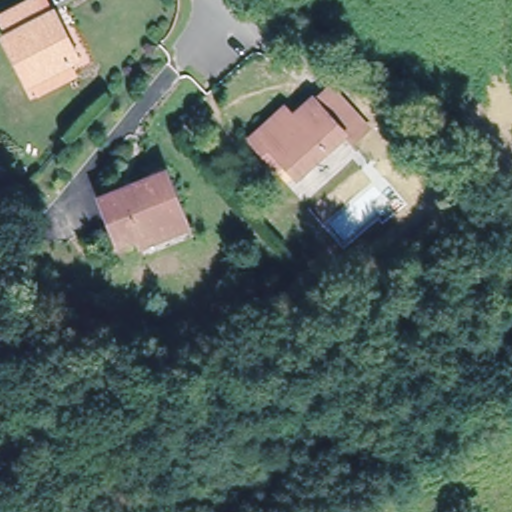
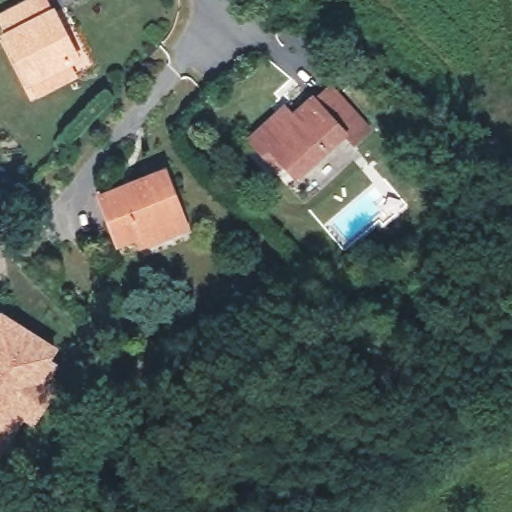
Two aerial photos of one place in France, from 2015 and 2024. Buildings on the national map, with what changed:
unchanged [(22,83),(0,35),(0,32),(3,30),(0,23),(0,11),(23,0),(35,0),(41,13),(52,8),(75,59),(65,64),(72,77),(28,96),(22,83)]
unchanged [(246,139),(255,131),(284,104),(294,114),(315,94),(319,98),(333,85),(371,130),(357,143),(349,134),(300,179),(287,165),(279,173),(246,139)]
unchanged [(187,225),(137,247),(134,240),(118,247),(96,195),(163,167),(187,225)]
new [(59,347),(52,360),(56,362),(46,379),(58,387),(31,428),(22,421),(0,455),(0,315),(1,313),(59,347)]

